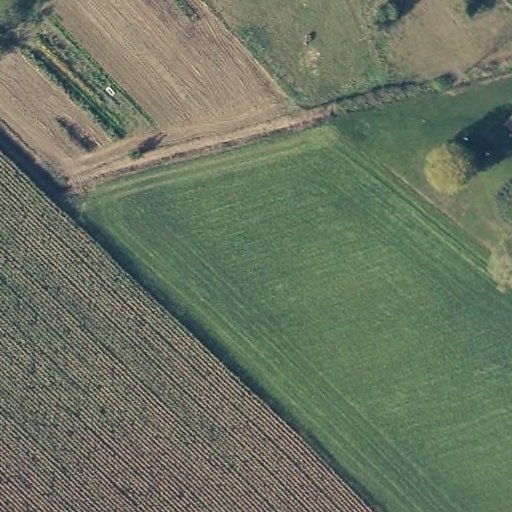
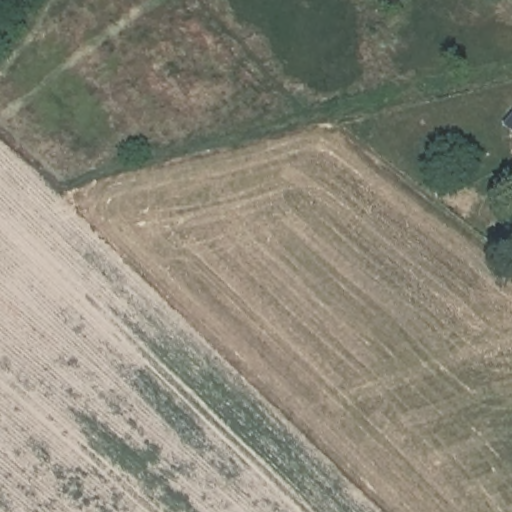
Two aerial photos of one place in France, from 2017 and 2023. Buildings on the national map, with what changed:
unchanged [(506,127),(512,119),(512,131),(506,127)]

